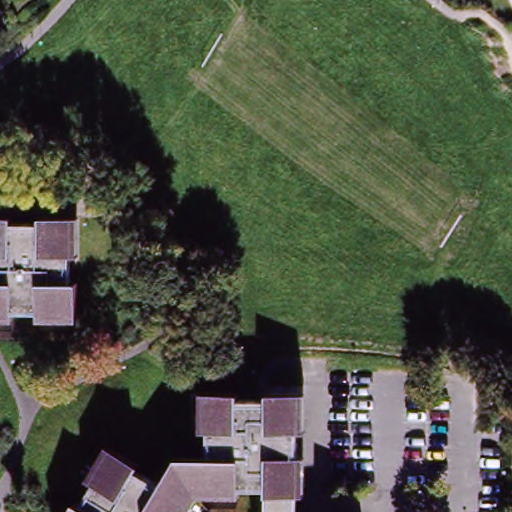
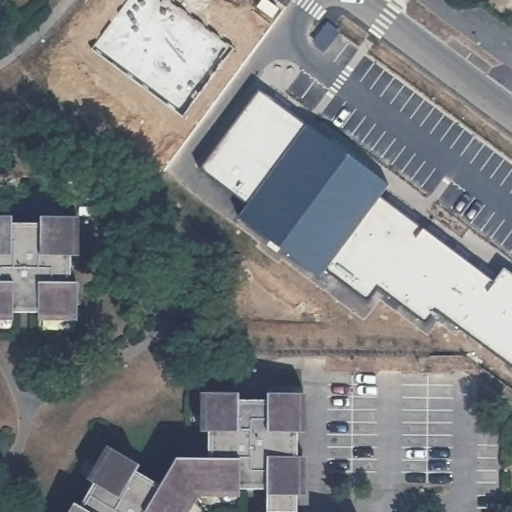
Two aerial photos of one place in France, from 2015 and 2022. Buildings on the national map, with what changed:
new [(259,89),(310,126),(250,206),(248,206),(199,169),(259,89)]
new [(248,206),(250,206),(310,126),(389,185),(380,196),(378,196),(324,268),(325,271),(320,277),(239,217),(248,206)]
new [(378,196),(380,196),(423,227),(378,287),(378,289),(368,302),(325,271),(324,268),(378,196)]
unchanged [(8,222),(8,229),(35,229),(35,223),(65,223),(65,288),(72,288),(72,319),(0,319),(0,222),(8,222)]
new [(378,287),(423,227),(447,245),(401,306),(378,289),(378,287)]
new [(447,245),(471,263),(436,310),(436,311),(426,324),(401,306),(447,245)]
new [(436,310),(471,263),(494,281),(495,281),(459,328),(436,311),(436,310)]
new [(494,281),(504,268),(512,274),(512,312),(502,326),(512,333),(512,357),(507,364),(459,328),(495,281),(494,281)]
new [(512,333),(502,326),(512,312),(512,333)]
new [(512,368),(507,364),(512,357),(512,368)]
unchanged [(234,406),(263,406),(263,400),(293,400),(292,512),(261,512),(262,496),(189,495),(179,512),(75,512),(108,455),(135,471),(132,477),(156,491),(171,464),(203,464),(204,399),(234,399),(234,406)]
unchanged [(75,512),(66,512),(69,509),(75,512)]

